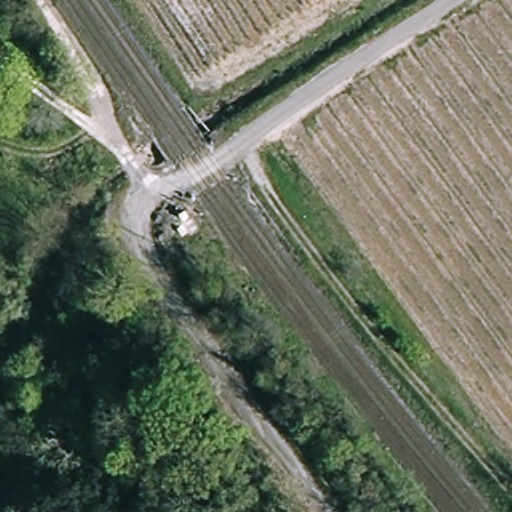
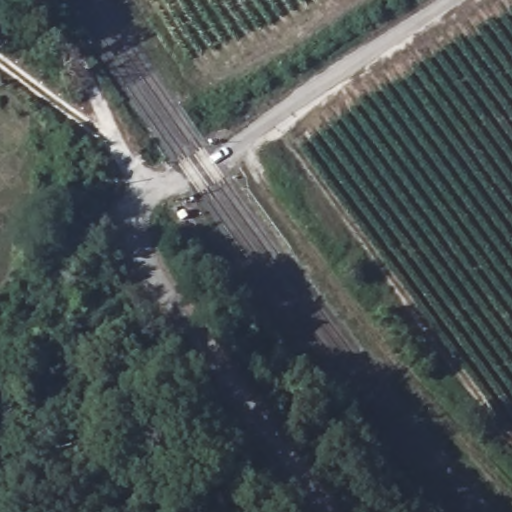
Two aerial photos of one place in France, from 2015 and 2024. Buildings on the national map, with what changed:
unchanged [(237,303),(246,317),(227,330),(218,316),(237,303)]

